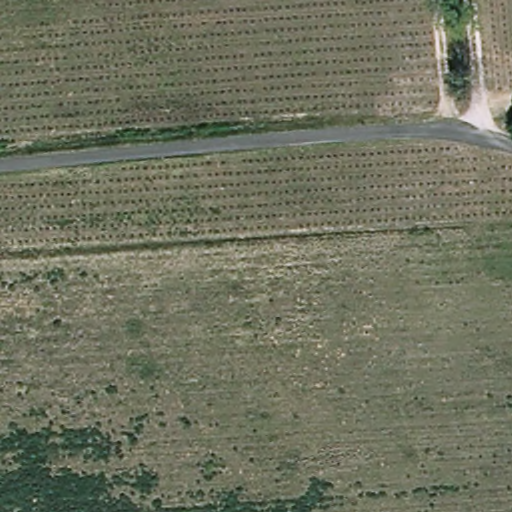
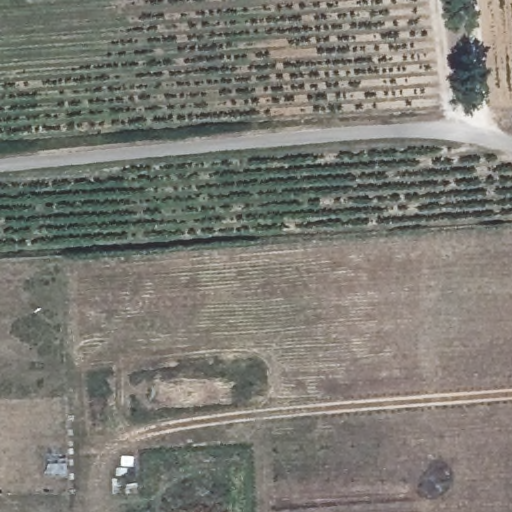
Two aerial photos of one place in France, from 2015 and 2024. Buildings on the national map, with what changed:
[]

